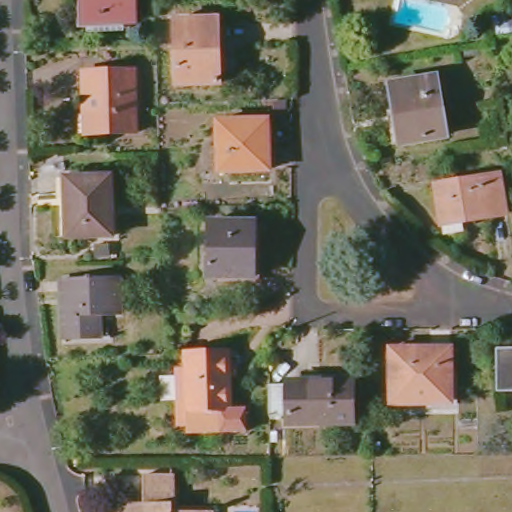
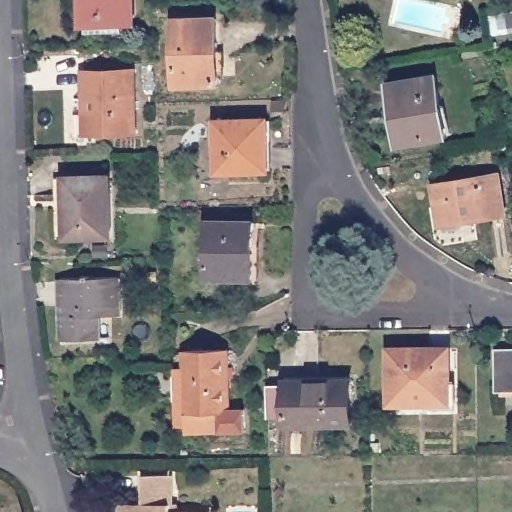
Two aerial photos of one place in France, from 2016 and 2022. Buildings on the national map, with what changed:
unchanged [(135,16),(127,16),(127,26),(87,28),(80,28),(79,0),(134,0),(135,16)]
unchanged [(216,19),(218,84),(177,85),(173,20),(216,19)]
unchanged [(132,70),(135,133),(85,135),(80,72),(132,70)]
unchanged [(432,77),(443,136),(395,144),(385,85),(432,77)]
unchanged [(262,120),(265,170),(213,172),(212,121),(262,120)]
unchanged [(497,174),(504,214),(440,225),(432,185),(497,174)]
unchanged [(105,177),(107,237),(62,237),(60,178),(105,177)]
unchanged [(252,223),(251,277),(205,277),(205,222),(252,223)]
unchanged [(118,278),(120,315),(99,315),(100,339),(67,340),(63,279),(118,278)]
unchanged [(512,347),(512,382),(501,382),(500,347),(512,347)]
unchanged [(450,348),(451,403),(390,403),(389,348),(450,348)]
unchanged [(226,349),(228,409),(243,408),(245,431),(185,433),(185,426),(175,426),(173,398),(172,368),(182,368),(182,351),(226,349)]
unchanged [(360,381),(362,422),(297,423),(297,416),(277,417),(277,385),(296,384),(296,382),(360,381)]
unchanged [(170,511),(207,511),(208,512),(122,512),(122,504),(142,504),(142,475),(170,475),(170,511)]

